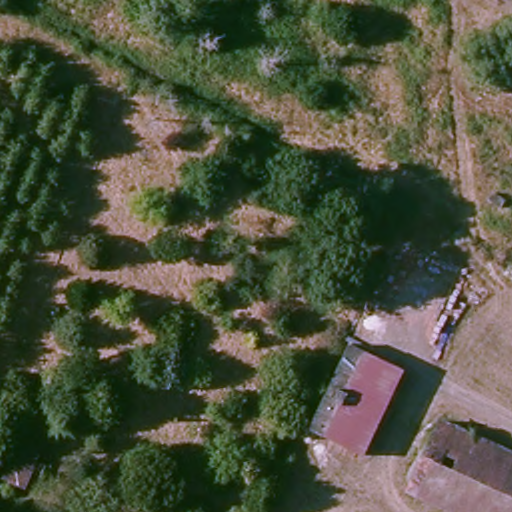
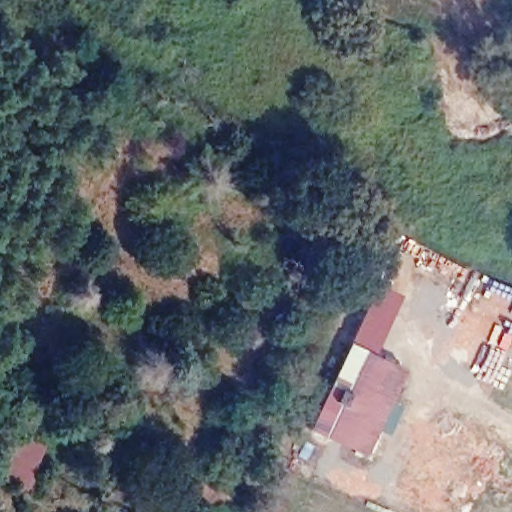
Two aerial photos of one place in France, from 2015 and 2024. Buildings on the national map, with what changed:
unchanged [(361,450),(322,431),(360,348),(400,367),(361,450)]
demolished [(512,512),(464,512),(411,487),(443,417),(512,449),(512,512)]
unchanged [(46,443),(26,487),(5,478),(25,434),(46,443)]

